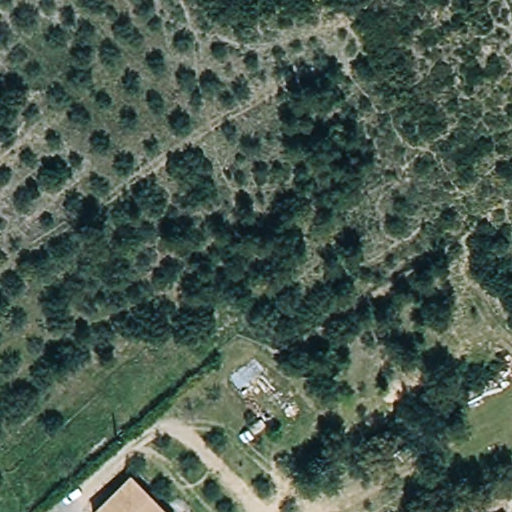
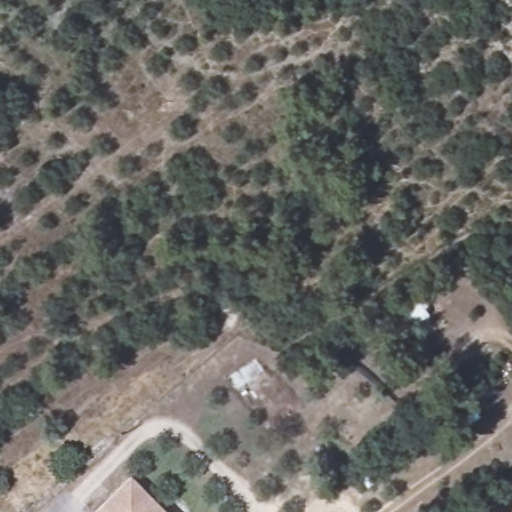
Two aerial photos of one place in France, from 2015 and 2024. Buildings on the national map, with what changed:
unchanged [(158,512),(91,512),(88,509),(126,479),(158,512)]

